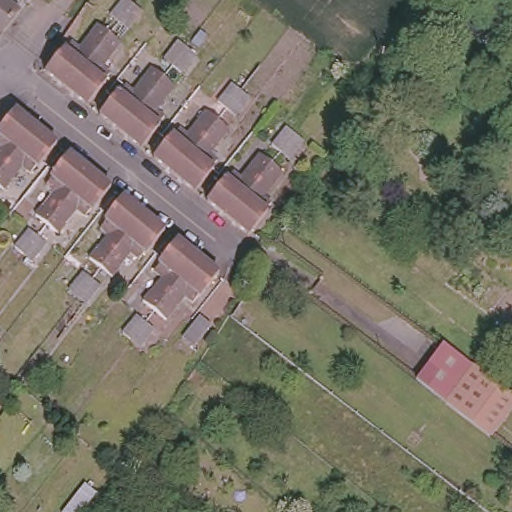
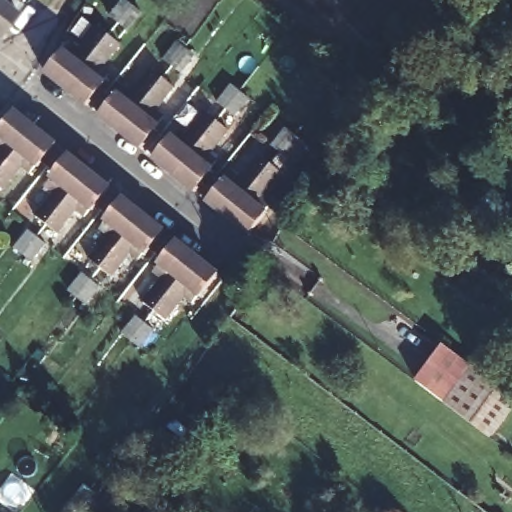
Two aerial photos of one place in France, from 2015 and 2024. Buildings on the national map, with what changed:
unchanged [(22,11),(0,37),(0,0),(17,0),(14,4),(22,11)]
unchanged [(124,23),(114,15),(126,0),(129,0),(137,6),(147,14),(134,31),(124,23)]
unchanged [(59,95),(39,78),(57,55),(59,56),(66,49),(73,56),(92,33),(103,41),(59,95)]
unchanged [(114,51),(96,74),(102,79),(97,86),(99,88),(80,112),(59,95),(103,41),(114,51)]
unchanged [(186,75),(177,68),(168,60),(182,43),(191,51),(200,59),(186,75)]
unchanged [(118,134),(97,117),(117,93),(118,94),(124,87),(132,93),(151,71),(162,80),(118,134)]
unchanged [(172,89),(154,111),(162,117),(156,125),(159,126),(139,151),(118,134),(162,80),(172,89)]
unchanged [(240,120),(231,113),(222,105),(235,88),(245,95),(254,103),(240,120)]
unchanged [(0,169),(0,126),(16,106),(37,124),(0,169)]
unchanged [(169,139),(171,140),(179,131),(187,137),(206,115),(217,124),(174,179),(152,161),(169,139)]
unchanged [(37,166),(36,165),(29,173),(22,166),(1,191),(0,190),(0,169),(37,124),(58,141),(37,166)]
unchanged [(228,133),(210,156),(216,161),(210,168),(212,169),(192,194),(174,179),(217,124),(228,133)]
unchanged [(293,165),(284,157),(275,149),(289,132),(299,140),(307,147),(293,165)]
unchanged [(90,168),(43,226),(31,216),(51,191),(43,185),(49,177),(48,176),(69,151),(90,168)]
unchanged [(223,179),(225,181),(231,174),(239,180),(257,158),(270,168),(224,221),(203,204),(223,179)]
unchanged [(110,185),(90,210),(87,208),(80,217),(72,211),(53,234),(43,226),(90,168),(110,185)]
unchanged [(281,177),(262,200),(270,206),(262,216),(245,238),(224,221),(270,168),(281,177)]
unchanged [(147,212),(101,269),(89,259),(109,235),(100,228),(107,220),(106,220),(127,195),(147,212)]
unchanged [(167,228),(146,253),(144,251),(137,259),(131,253),(112,277),(101,269),(147,212),(167,228)]
unchanged [(30,270),(20,262),(11,254),(24,237),(33,245),(43,253),(30,270)]
unchanged [(197,255),(152,312),(142,304),(161,280),(152,273),(159,265),(157,264),(177,238),(197,255)]
unchanged [(219,272),(198,297),(196,296),(190,303),(183,298),(164,321),(152,312),(197,255),(219,272)]
unchanged [(83,313),(72,305),(62,297),(76,280),(86,288),(97,296),(83,313)]
unchanged [(135,355),(126,348),(117,341),(131,324),(140,331),(149,338),(135,355)]
unchanged [(430,395),(457,357),(481,374),(486,378),(457,416),(430,395)]
unchanged [(486,378),(512,397),(512,434),(502,449),(457,416),(486,378)]

